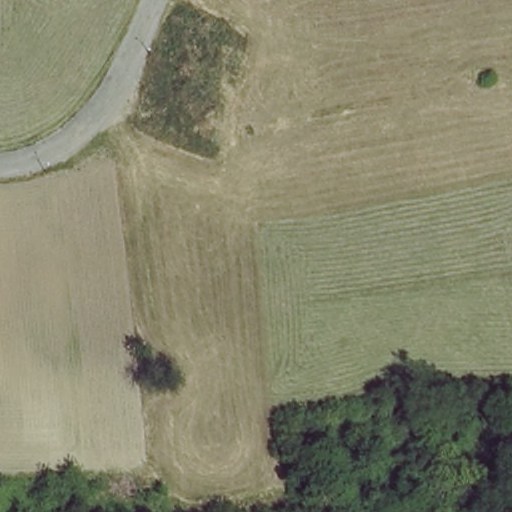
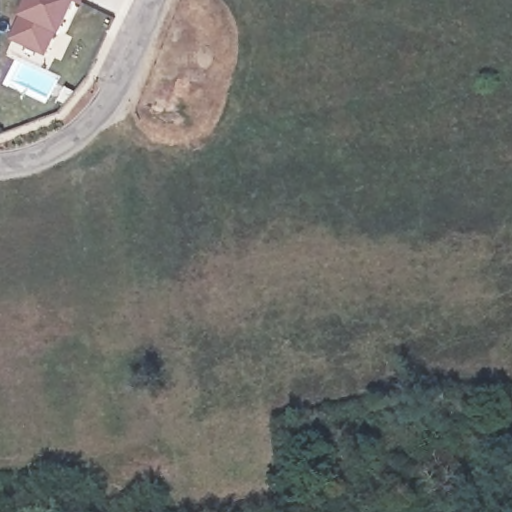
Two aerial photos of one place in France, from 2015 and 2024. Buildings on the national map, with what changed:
new [(26,1),(26,0),(79,0),(60,35),(57,34),(45,56),(7,39),(26,1)]

